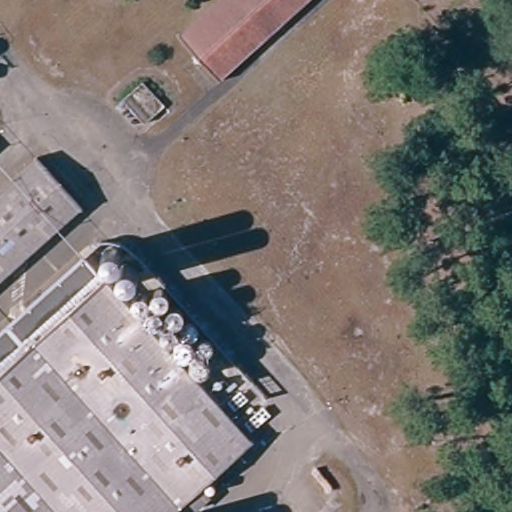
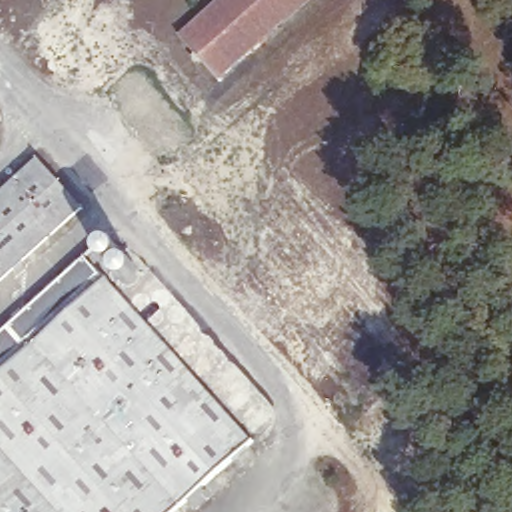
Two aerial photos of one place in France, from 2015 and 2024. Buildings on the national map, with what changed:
unchanged [(222,70),(183,27),(213,0),(305,0),(225,73),(222,70)]
unchanged [(140,80),(161,104),(140,123),(118,99),(140,80)]
unchanged [(0,272),(0,187),(35,156),(78,204),(0,272)]
unchanged [(83,256),(250,440),(195,487),(206,500),(192,512),(182,501),(169,512),(0,512),(0,329),(83,256)]

